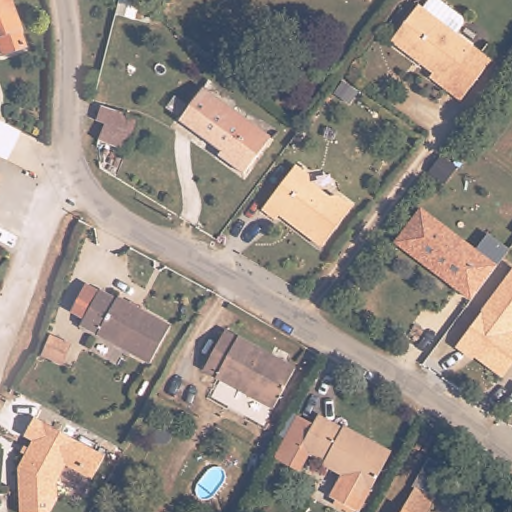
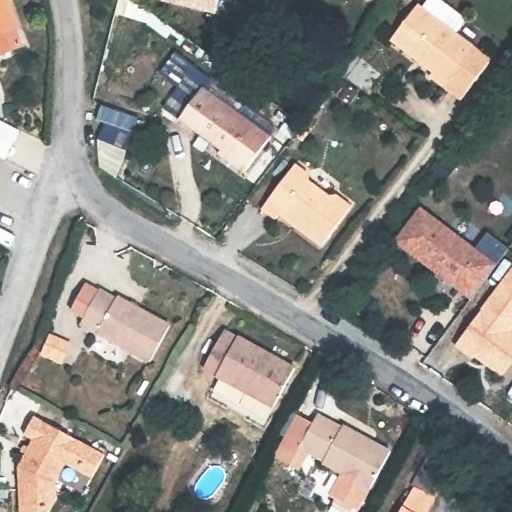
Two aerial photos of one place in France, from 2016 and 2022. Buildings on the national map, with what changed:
unchanged [(17,24),(16,24),(22,42),(1,49),(0,50),(0,0),(8,0),(17,24)]
new [(159,0),(219,0),(215,15),(158,1),(159,0)]
new [(368,1),(367,0),(369,0),(368,1)]
unchanged [(412,5),(417,0),(434,0),(453,16),(453,21),(445,32),(463,47),(453,59),(459,65),(470,51),(479,59),(445,99),(415,76),(421,69),(378,34),(406,0),(412,5)]
unchanged [(241,172),(214,152),(218,147),(176,115),(199,83),(267,135),(241,172)]
unchanged [(135,117),(127,147),(98,139),(100,125),(92,122),(95,106),(135,117)]
unchanged [(0,117),(20,127),(7,155),(0,152),(0,117)]
unchanged [(321,242),(285,214),(279,217),(263,204),(300,158),(314,170),(309,175),(336,196),(342,191),(354,203),(321,242)]
unchanged [(0,178),(0,169),(3,170),(0,178)]
unchanged [(0,195),(0,190),(2,191),(0,195)]
unchanged [(475,246),(488,230),(511,249),(468,304),(391,246),(420,206),(475,246)]
unchanged [(501,380),(455,347),(512,268),(512,365),(501,380)]
unchanged [(84,318),(71,311),(85,284),(98,291),(99,290),(116,299),(117,297),(170,326),(150,362),(97,334),(80,324),(84,318)]
unchanged [(290,368),(269,407),(198,369),(219,330),(290,368)]
unchanged [(62,363),(58,361),(41,354),(49,335),(66,343),(70,344),(62,363)]
unchanged [(317,410),(341,423),(343,421),(390,447),(357,507),(352,504),(349,508),(332,499),(334,495),(329,492),(341,469),(322,459),(323,457),(308,448),(299,444),(312,419),(317,410)]
unchanged [(312,419),(299,444),(308,448),(298,466),(274,453),(297,411),(312,419)]
unchanged [(65,465),(56,482),(56,497),(41,498),(42,512),(20,512),(18,467),(32,440),(24,435),(34,417),(104,456),(95,472),(91,479),(80,473),(65,465)]
unchanged [(449,470),(433,498),(411,486),(428,458),(449,470)]
unchanged [(429,512),(400,512),(413,488),(435,501),(429,512)]

